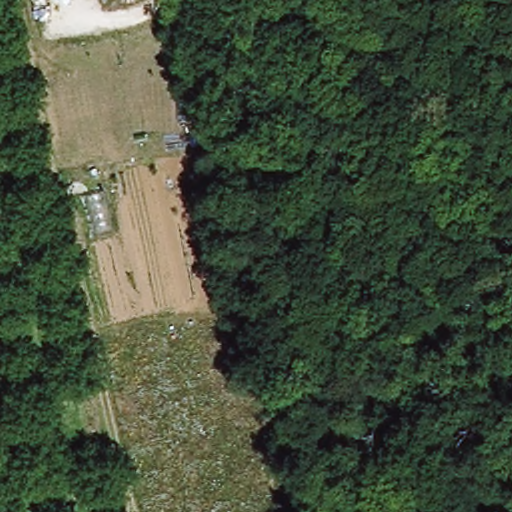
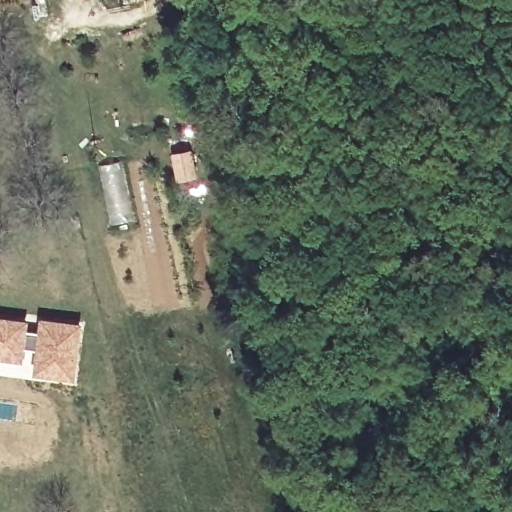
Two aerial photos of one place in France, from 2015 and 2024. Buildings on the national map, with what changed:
unchanged [(362,254),(412,235),(422,271),(372,288),(362,254)]
new [(28,320),(28,328),(35,329),(30,377),(0,374),(0,316),(28,320)]
new [(35,329),(37,317),(80,322),(73,381),(30,377),(35,329)]

